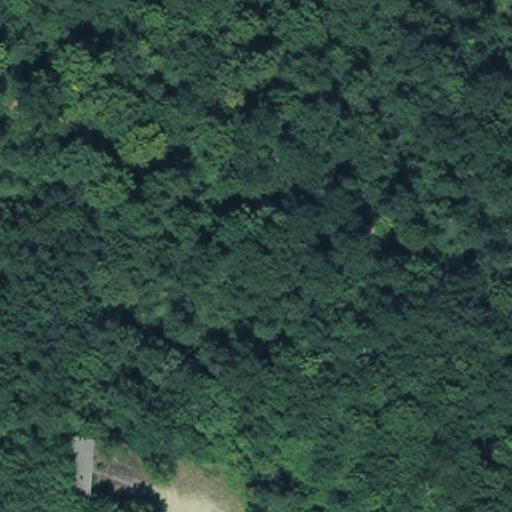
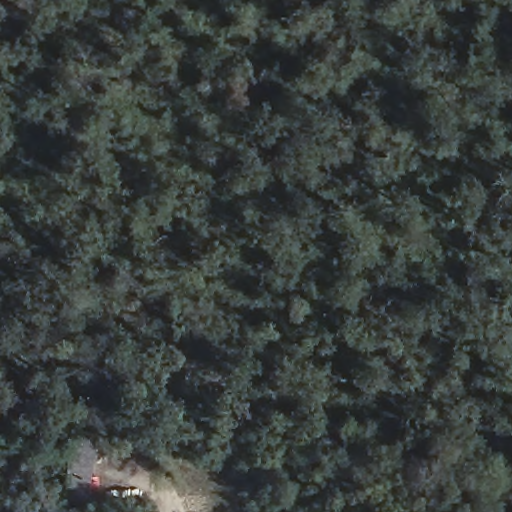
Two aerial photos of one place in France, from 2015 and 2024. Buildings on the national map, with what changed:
unchanged [(64,439),(82,439),(87,439),(87,495),(65,494),(65,459),(64,439)]

